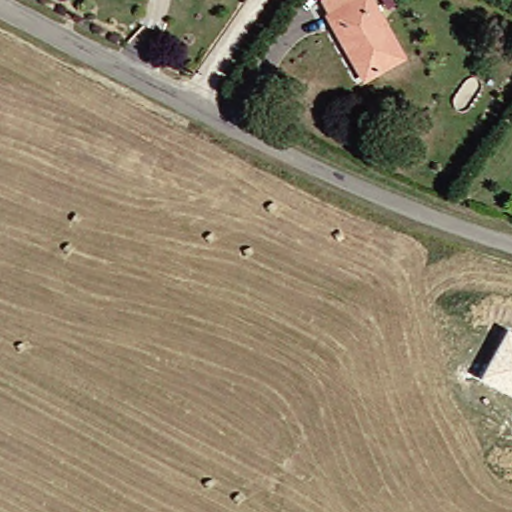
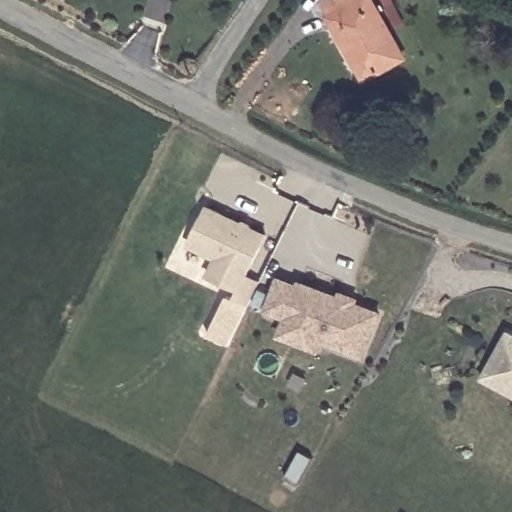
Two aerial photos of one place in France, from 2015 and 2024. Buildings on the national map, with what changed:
unchanged [(398,57),(362,81),(340,46),(335,49),(327,34),(330,31),(313,0),(364,0),(398,57)]
new [(206,203),(263,232),(244,272),(257,278),(245,304),(230,297),(235,287),(206,272),(214,255),(187,242),(206,203)]
new [(283,315),(265,307),(277,277),(296,285),(297,281),(337,297),(339,293),(352,298),(350,302),(376,312),(358,355),(317,338),(313,349),(277,333),(282,320),(283,315)]
unchanged [(512,394),(482,378),(508,329),(512,331),(512,394)]

